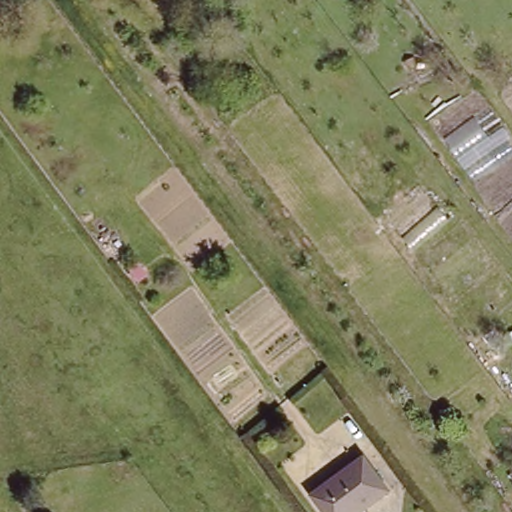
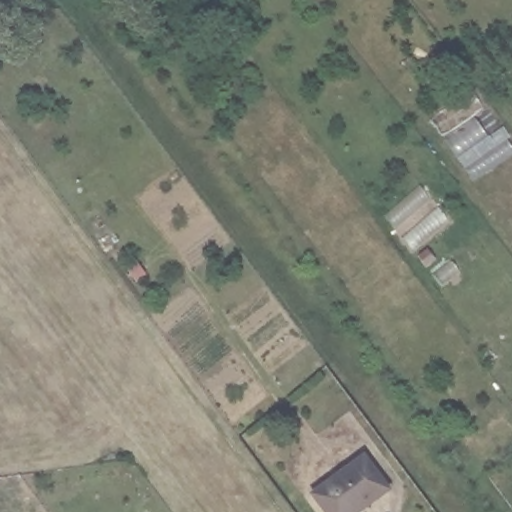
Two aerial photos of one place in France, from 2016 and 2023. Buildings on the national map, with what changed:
unchanged [(313,494),(363,456),(390,491),(362,512),(327,512),(313,494)]

